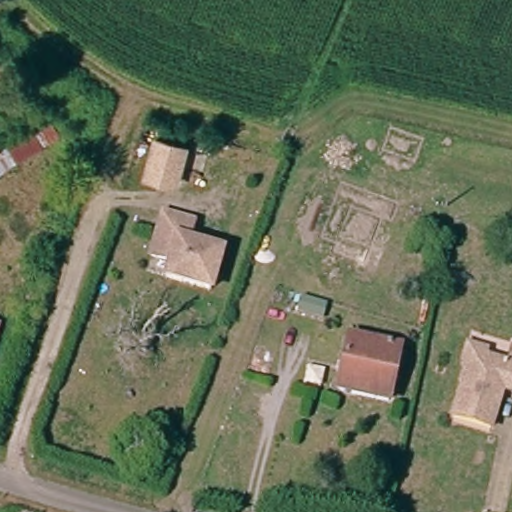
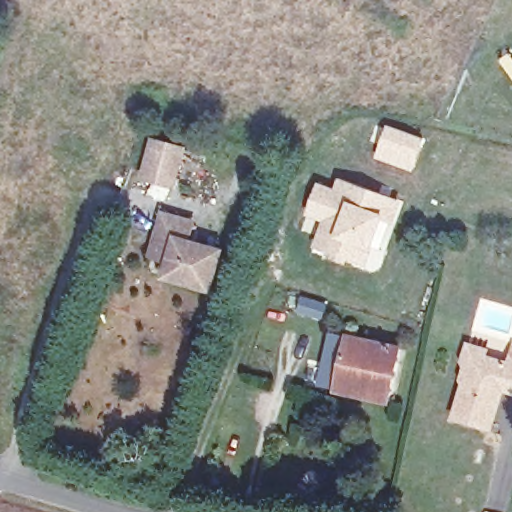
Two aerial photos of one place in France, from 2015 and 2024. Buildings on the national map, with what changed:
demolished [(62,139),(0,174),(0,149),(48,121),(62,139)]
new [(425,141),(413,172),(376,159),(389,126),(425,141)]
unchanged [(188,142),(179,180),(150,173),(159,135),(188,142)]
new [(334,188),(337,178),(402,202),(394,225),(383,222),(372,252),(367,268),(348,261),(347,266),(330,259),(332,254),(313,249),(323,222),(307,215),(319,183),(334,188)]
demolished [(370,210),(348,253),(292,227),(315,184),(370,210)]
unchanged [(215,283),(170,271),(174,256),(155,251),(161,228),(165,209),(197,217),(192,236),(225,244),(215,283)]
demolished [(281,222),(292,227),(277,253),(267,247),(281,222)]
unchanged [(347,340),(395,351),(384,403),(337,392),(347,340)]
unchanged [(512,352),(512,388),(503,386),(492,425),(456,414),(471,363),(462,360),(468,342),(487,347),(485,354),(510,362),(512,352)]
demolished [(211,414),(222,419),(225,413),(226,414),(241,421),(231,442),(217,436),(204,430),(211,414)]

